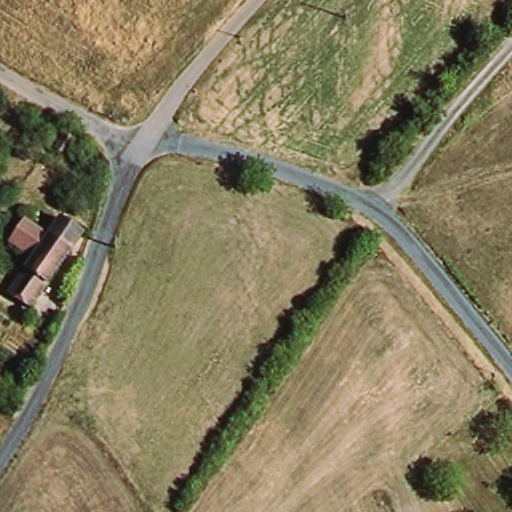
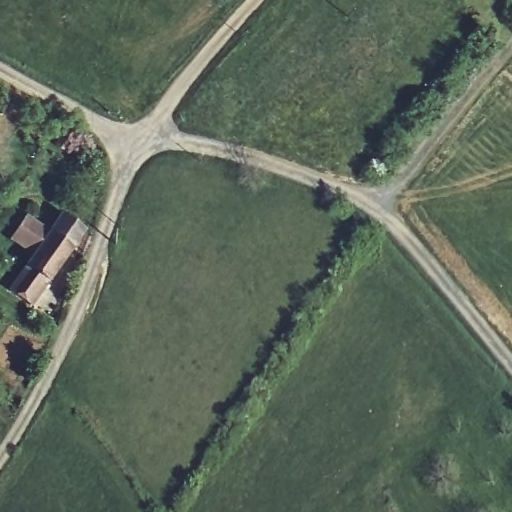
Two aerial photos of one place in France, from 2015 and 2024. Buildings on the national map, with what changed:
unchanged [(61,130),(70,136),(60,151),(50,145),(61,130)]
unchanged [(15,290),(38,254),(16,237),(29,217),(53,234),(66,217),(88,232),(75,250),(37,305),(15,290)]

